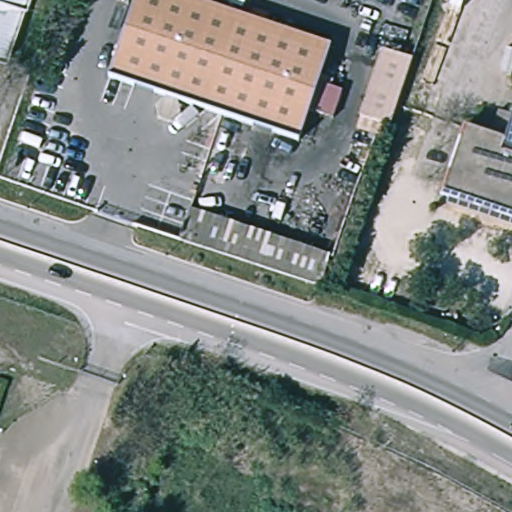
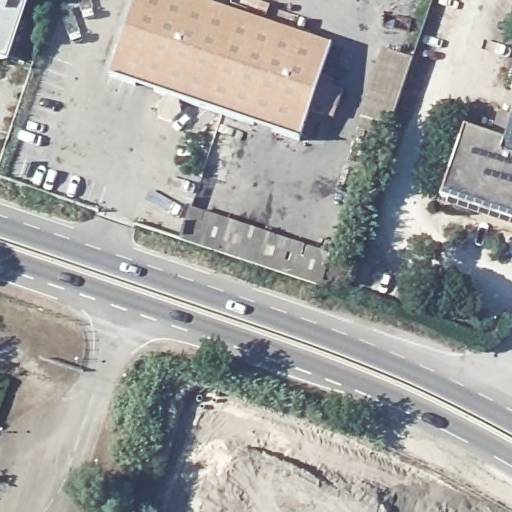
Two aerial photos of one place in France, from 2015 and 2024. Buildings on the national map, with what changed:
unchanged [(7,63),(0,61),(0,0),(28,0),(7,63)]
unchanged [(337,44),(305,138),(115,73),(139,0),(212,0),(255,15),(272,21),(337,44)]
unchanged [(391,125),(361,115),(383,48),(415,58),(391,125)]
unchanged [(465,129),(506,142),(512,124),(512,223),(441,199),(465,129)]
unchanged [(190,205),(333,251),(322,284),(180,238),(190,205)]

